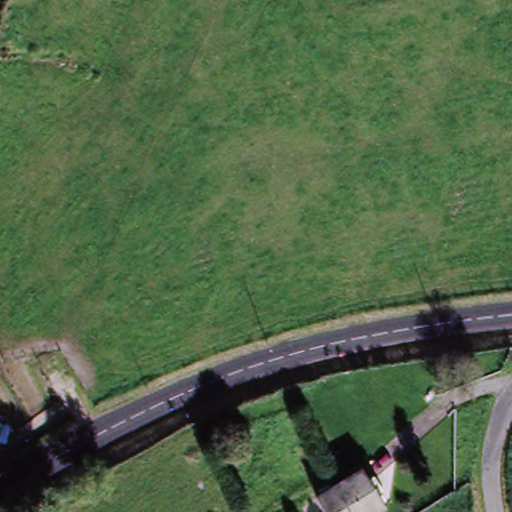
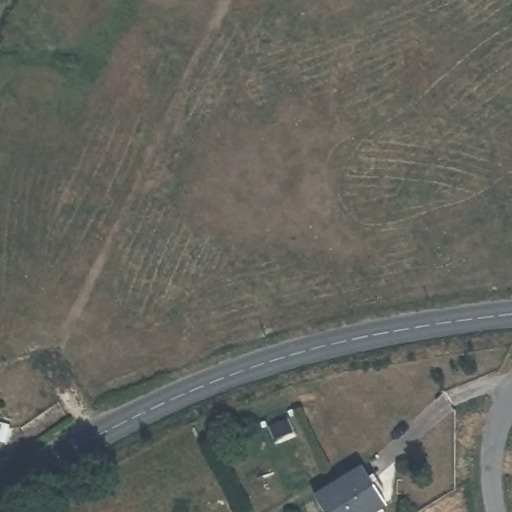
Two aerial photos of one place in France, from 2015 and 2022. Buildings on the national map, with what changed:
unchanged [(21,420),(17,436),(9,435),(6,445),(0,444),(0,415),(21,420)]
unchanged [(360,467),(384,498),(365,512),(324,512),(315,498),(360,467)]

